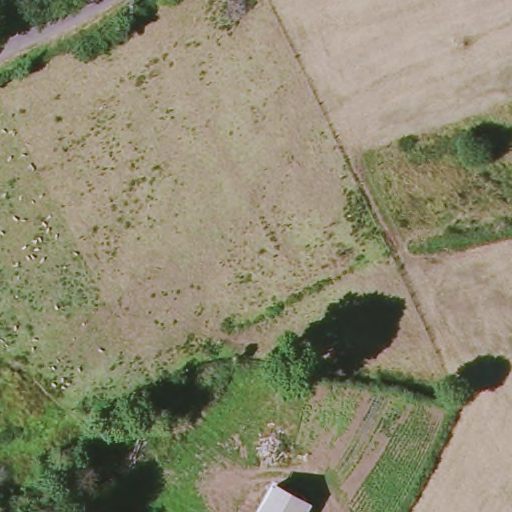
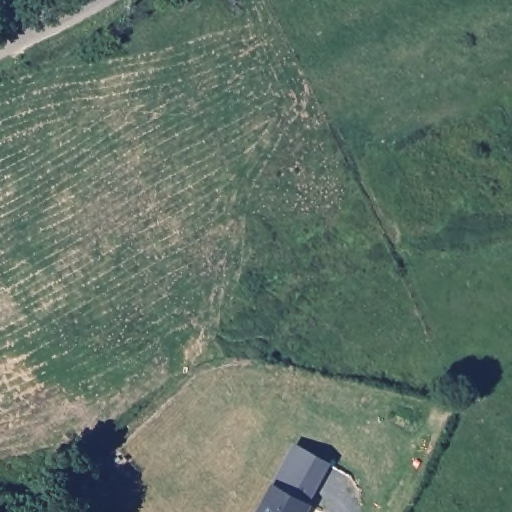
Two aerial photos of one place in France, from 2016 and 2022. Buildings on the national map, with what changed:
new [(293,442),(332,462),(310,497),(277,479),(293,442)]
unchanged [(257,512),(277,479),(310,497),(302,512),(257,512)]

